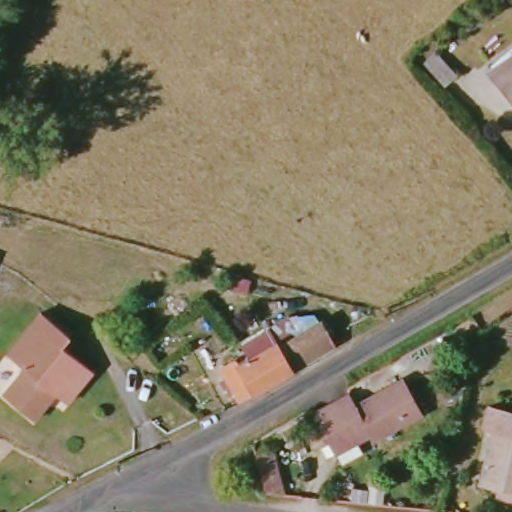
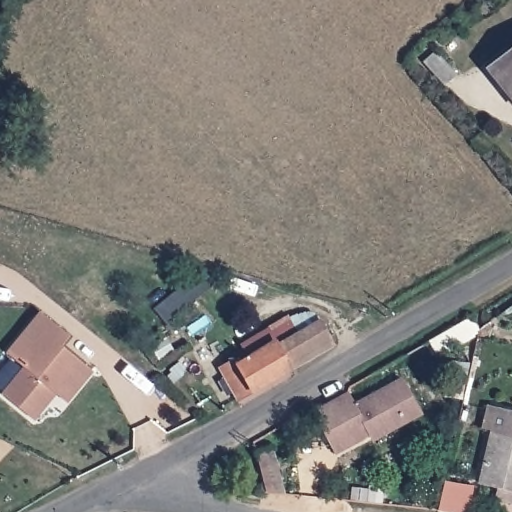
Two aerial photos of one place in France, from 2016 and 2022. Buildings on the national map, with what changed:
unchanged [(419,54),(432,43),(437,48),(453,66),(439,77),(424,58),(419,54)]
unchanged [(512,48),(512,91),(492,65),(512,48)]
unchanged [(253,395),(239,402),(223,371),(244,358),(247,364),(294,336),(286,324),(310,309),(320,321),(334,339),(338,347),(253,395)]
unchanged [(3,394),(25,367),(7,353),(39,311),(67,333),(60,343),(93,369),(68,399),(53,388),(46,394),(46,404),(35,418),(3,394)]
unchanged [(332,444),(313,412),(350,391),(358,403),(404,377),(424,413),(386,436),(374,431),(355,443),(337,453),(332,444)]
unchanged [(512,412),(512,489),(480,482),(497,427),(478,421),(482,404),(512,412)]
unchanged [(278,473),(279,484),(263,482),(257,440),(274,438),(276,456),(278,473)]

